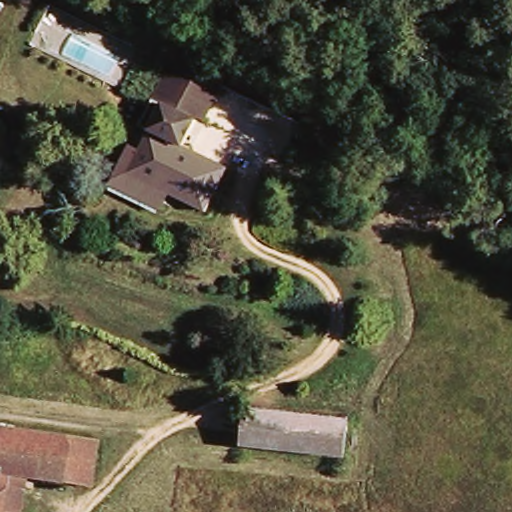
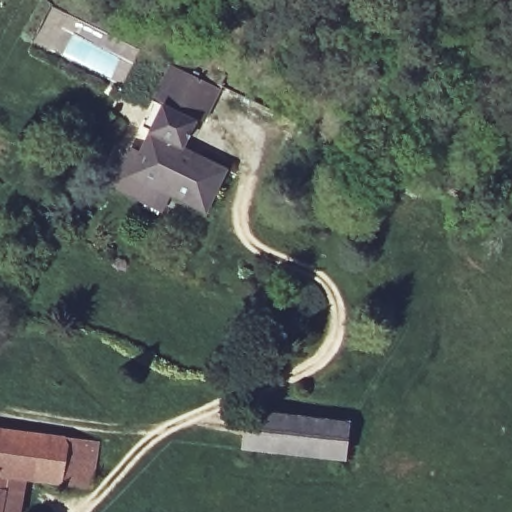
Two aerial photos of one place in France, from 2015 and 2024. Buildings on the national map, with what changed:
unchanged [(168,58),(222,83),(200,131),(190,126),(185,138),(140,117),(168,58)]
unchanged [(107,191),(110,185),(122,159),(129,162),(141,140),(132,135),(140,117),(185,138),(177,157),(223,179),(206,214),(167,195),(160,209),(157,215),(107,191)]
unchanged [(243,441),(247,409),(345,422),(340,454),(243,441)]
unchanged [(90,486),(5,473),(0,509),(0,427),(97,442),(90,486)]

